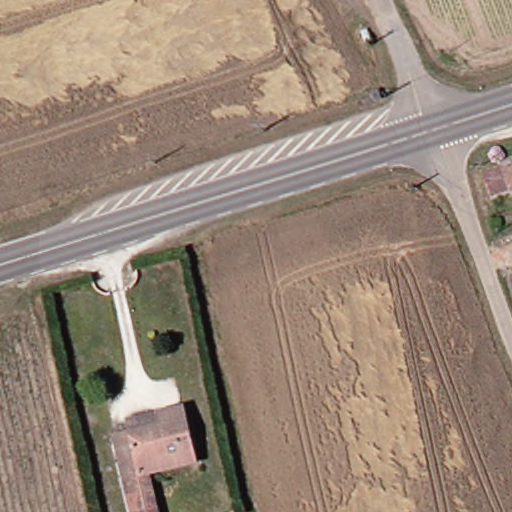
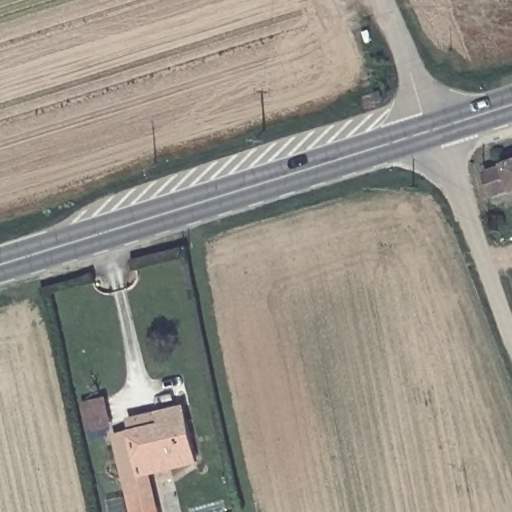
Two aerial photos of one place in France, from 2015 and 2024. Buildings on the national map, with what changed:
unchanged [(512,159),(512,190),(509,186),(504,190),(498,191),(490,167),(500,163),(512,159)]
unchanged [(194,460),(122,477),(111,430),(131,424),(129,416),(158,409),(182,404),(194,460)]
unchanged [(158,512),(130,512),(129,507),(155,500),(158,512)]

